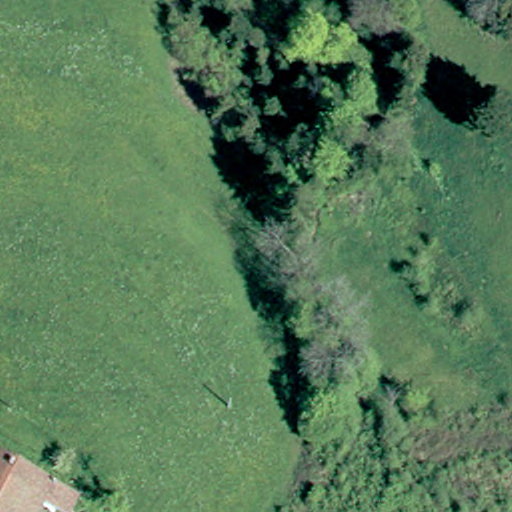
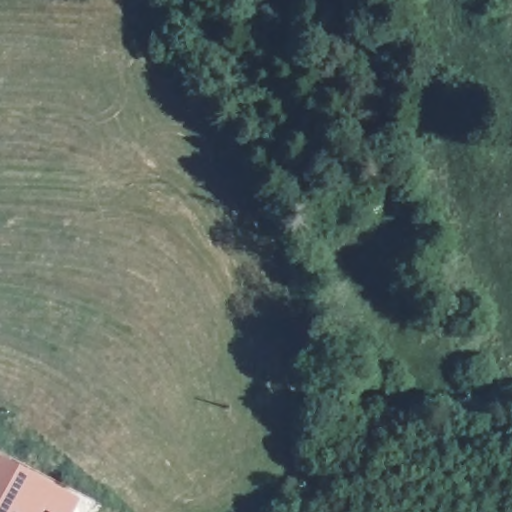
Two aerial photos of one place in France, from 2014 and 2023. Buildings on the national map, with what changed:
unchanged [(69,494),(63,505),(60,512),(56,512),(38,502),(32,512),(0,512),(0,457),(69,494)]

